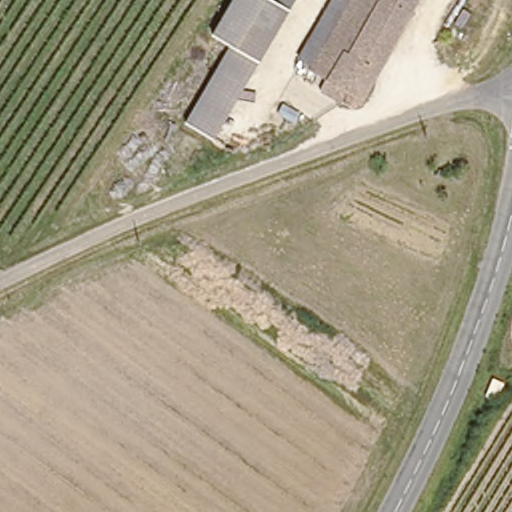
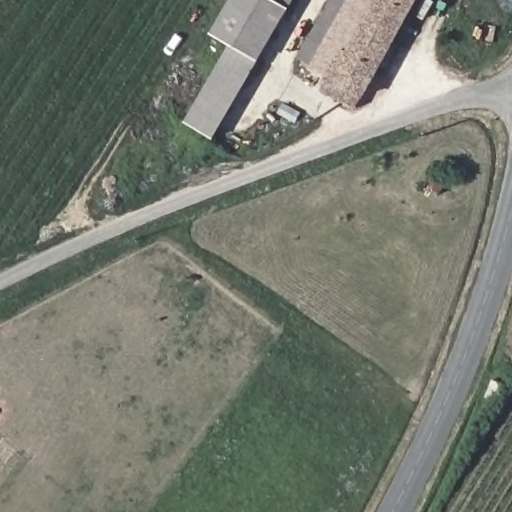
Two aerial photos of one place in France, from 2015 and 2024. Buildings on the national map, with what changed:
unchanged [(210,133),(182,116),(250,0),(280,0),(285,3),(210,133)]
unchanged [(280,0),(286,0),(285,3),(280,0)]
unchanged [(333,0),(350,0),(316,60),(303,53),(333,0)]
unchanged [(419,0),(360,105),(330,88),(336,78),(314,65),(316,60),(350,0),(419,0)]

